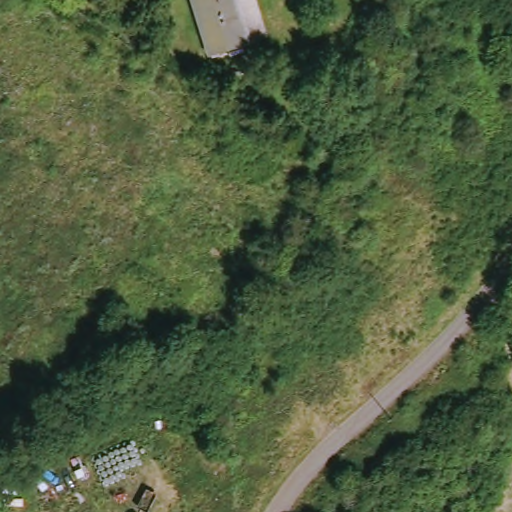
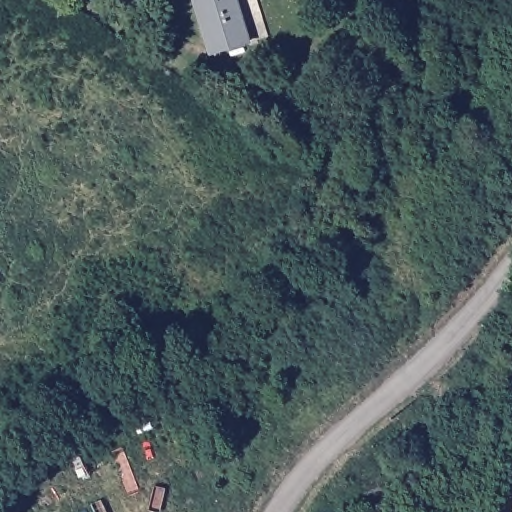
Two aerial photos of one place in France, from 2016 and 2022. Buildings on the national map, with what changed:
unchanged [(258,43),(215,55),(199,0),(246,0),(258,43)]

